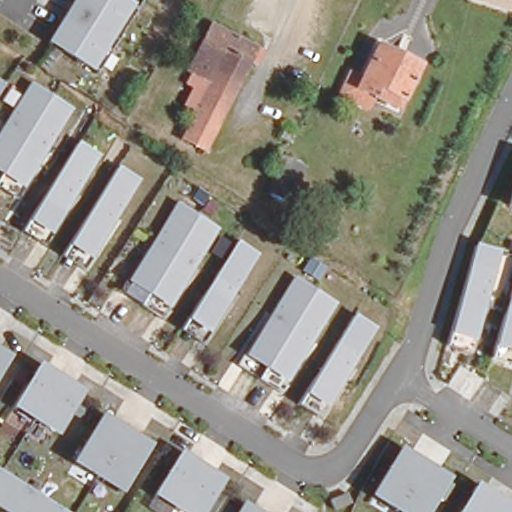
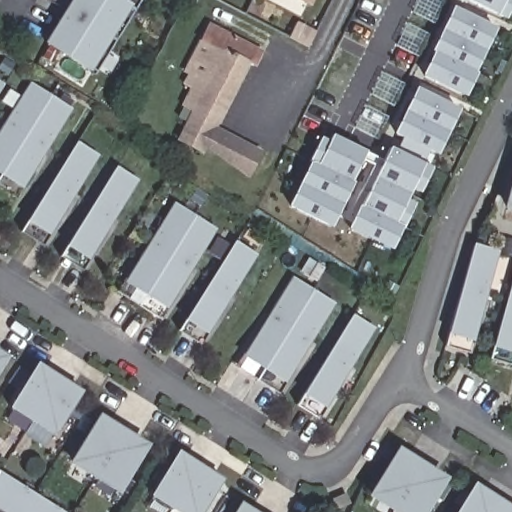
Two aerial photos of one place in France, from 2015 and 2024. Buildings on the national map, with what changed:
unchanged [(96,76),(41,45),(71,0),(143,0),(96,76)]
new [(309,6),(297,0),(312,0),(309,6)]
new [(512,3),(509,13),(469,0),(512,0),(512,3)]
new [(497,28),(476,70),(478,72),(465,97),(424,77),(424,75),(422,75),(434,51),(432,50),(453,6),(497,28)]
unchanged [(186,79),(209,30),(255,53),(202,155),(180,144),(193,116),(172,106),(186,79)]
demolished [(386,35),(427,57),(406,98),(384,87),(364,78),(370,66),(386,35)]
unchanged [(0,94),(0,79),(7,83),(0,94)]
unchanged [(21,190),(0,177),(0,129),(30,81),(75,111),(21,190)]
new [(397,150),(403,139),(394,135),(416,89),(459,109),(436,155),(430,151),(425,163),(433,167),(425,182),(417,178),(407,200),(415,203),(391,250),(347,230),(389,146),(397,150)]
new [(263,152),(247,179),(228,165),(204,150),(216,127),(263,152)]
new [(315,149),(323,152),(332,135),(366,152),(352,181),(354,183),(331,228),(288,206),(310,161),(315,149)]
unchanged [(46,239),(24,225),(78,141),(100,156),(46,239)]
demolished [(295,169),(281,198),(261,189),(275,159),(295,169)]
unchanged [(85,262),(64,246),(117,166),(140,181),(85,262)]
unchanged [(512,170),(512,214),(500,211),(512,170)]
unchanged [(166,313),(123,285),(173,201),(216,230),(166,313)]
unchanged [(206,339),(184,323),(235,241),(259,255),(206,339)]
unchanged [(448,335),(471,242),(501,249),(478,343),(448,335)]
unchanged [(512,272),(512,355),(493,351),(512,272)]
unchanged [(283,385),(240,357),(289,275),(335,302),(283,385)]
unchanged [(323,410),(302,396),(354,313),(375,327),(323,410)]
unchanged [(0,371),(0,351),(9,357),(0,371)]
unchanged [(51,438),(7,410),(37,362),(84,390),(51,438)]
unchanged [(114,496),(67,463),(98,413),(147,446),(114,496)]
unchanged [(391,512),(367,495),(398,447),(447,480),(425,512),(391,512)]
unchanged [(170,512),(148,497),(178,451),(223,479),(201,512),(170,512)]
unchanged [(66,512),(3,512),(0,510),(0,470),(66,512)]
unchanged [(512,506),(512,512),(455,512),(474,481),(512,506)]
unchanged [(256,512),(234,512),(241,502),(256,512)]

